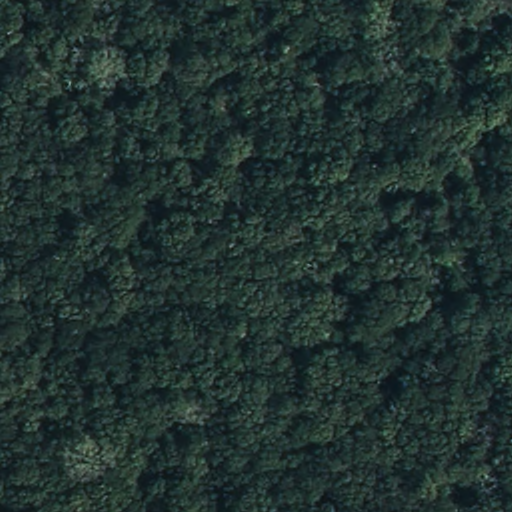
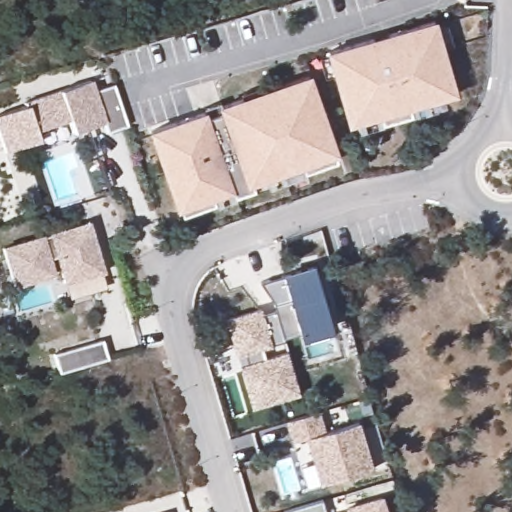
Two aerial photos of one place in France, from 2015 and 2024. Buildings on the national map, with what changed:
new [(434,19),(456,94),(348,127),(327,51),(434,19)]
new [(310,73),(339,154),(234,191),(176,210),(149,130),(310,73)]
new [(0,143),(0,115),(26,105),(25,101),(59,92),(90,81),(93,92),(112,85),(126,128),(105,133),(101,124),(73,134),(68,120),(34,132),(37,142),(3,153),(0,143)]
new [(103,272),(64,285),(55,257),(48,259),(53,276),(13,288),(2,248),(87,222),(103,272)]
new [(316,267),(333,325),(285,338),(277,310),(275,304),(261,283),(316,267)]
new [(287,397),(253,407),(241,367),(238,355),(227,319),(261,309),(262,314),(277,310),(285,338),(286,341),(272,345),(276,356),(289,353),(299,389),(301,393),(287,397)]
new [(102,341),(107,360),(59,375),(54,355),(102,341)]
new [(320,411),(326,432),(361,422),(375,469),(320,485),(305,438),(291,442),(285,422),(320,411)]
new [(348,508),(382,498),(386,512),(349,512),(348,508)]
new [(323,500),(326,512),(285,512),(285,511),(323,500)]

